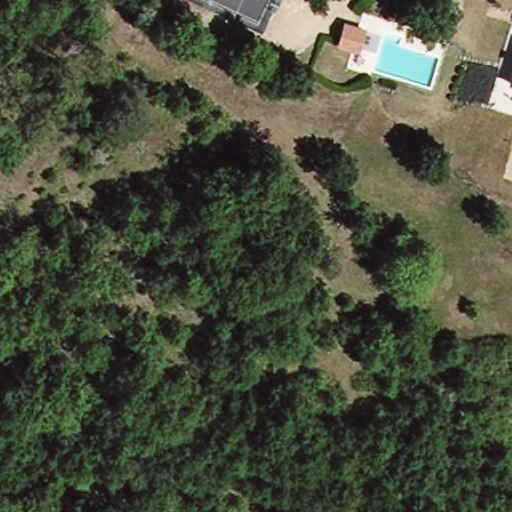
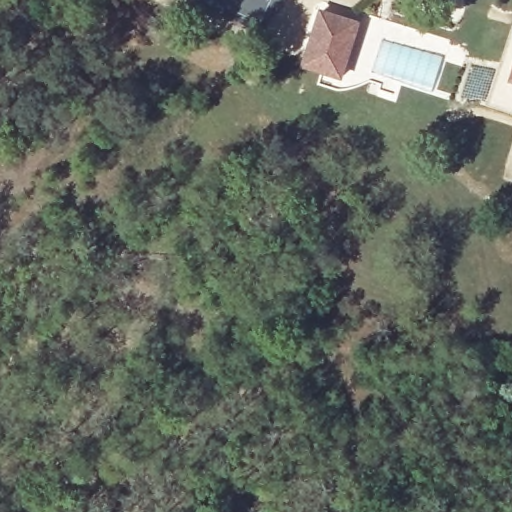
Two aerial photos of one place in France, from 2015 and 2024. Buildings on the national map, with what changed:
new [(344,80),(302,67),(318,9),(361,21),(344,80)]
unchanged [(512,60),(512,88),(505,86),(511,64),(512,60)]

